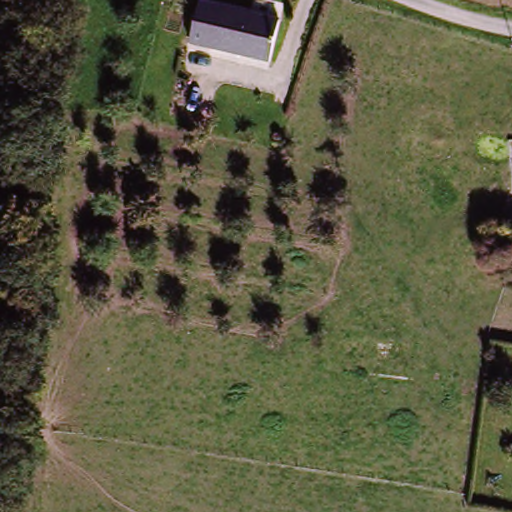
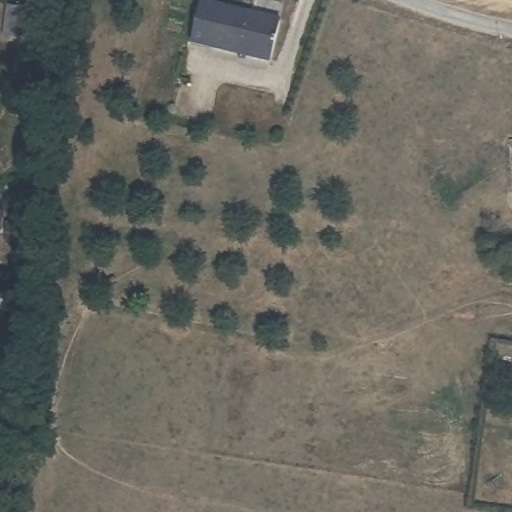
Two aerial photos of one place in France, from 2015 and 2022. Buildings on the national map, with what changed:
unchanged [(40,37),(7,35),(10,1),(42,3),(40,37)]
unchanged [(280,19),(274,63),(187,51),(193,6),(280,19)]
unchanged [(0,208),(9,209),(7,233),(0,232),(0,208)]

